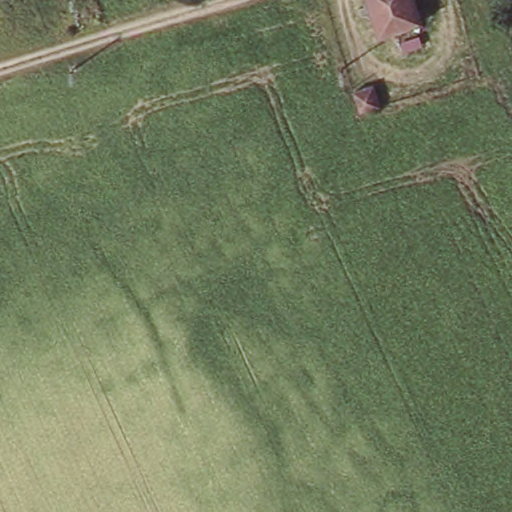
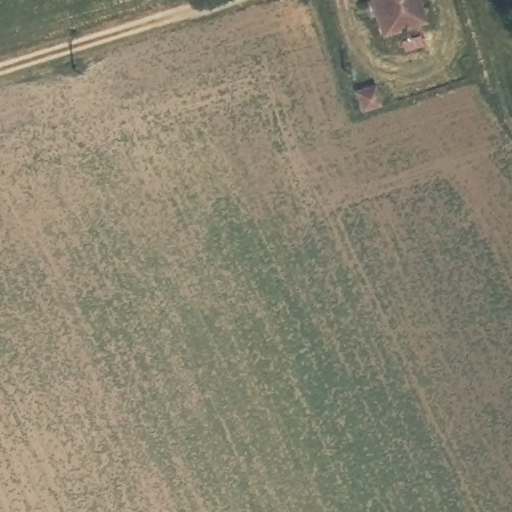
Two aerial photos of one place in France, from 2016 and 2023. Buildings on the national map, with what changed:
unchanged [(382,34),(371,0),(413,0),(420,21),(382,34)]
unchanged [(378,87),(384,106),(363,112),(358,93),(378,87)]

